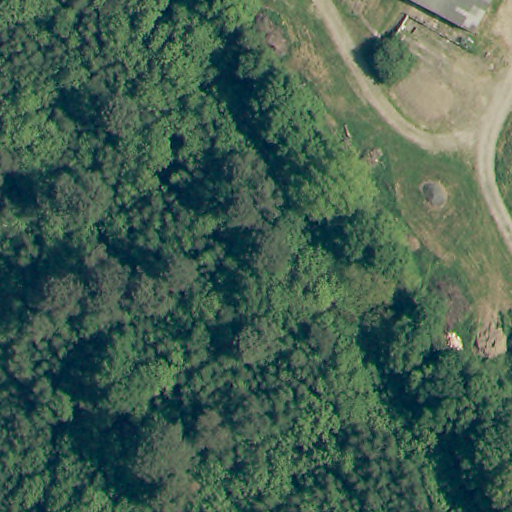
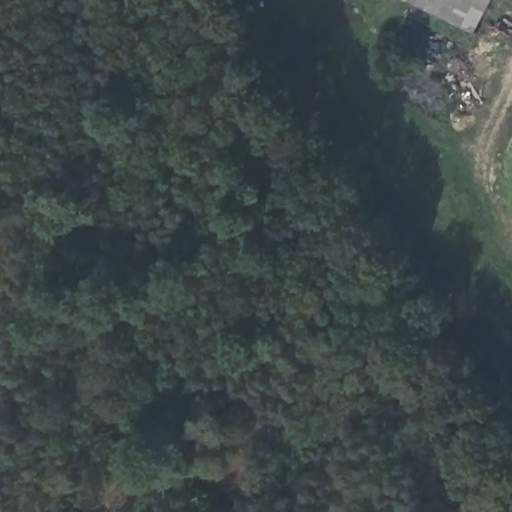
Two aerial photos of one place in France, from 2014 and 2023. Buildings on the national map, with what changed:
unchanged [(476,34),(412,0),(494,0),(476,34)]

